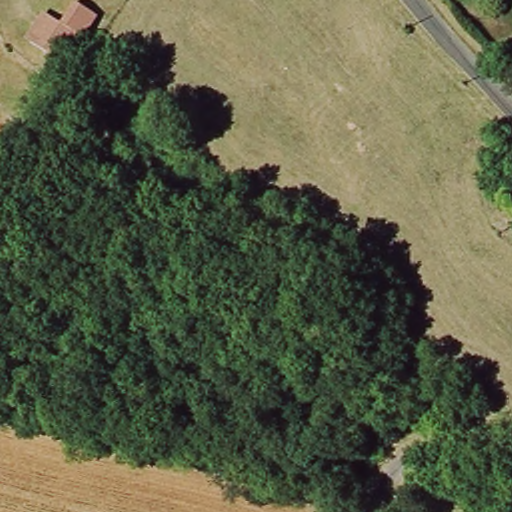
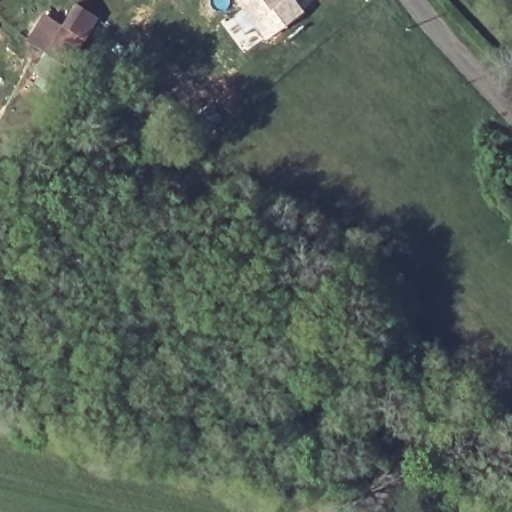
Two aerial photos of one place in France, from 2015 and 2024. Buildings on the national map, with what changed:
new [(264,41),(234,0),(294,0),(304,11),(264,41)]
unchanged [(76,3),(96,18),(65,62),(35,41),(51,18),(60,25),(76,3)]

